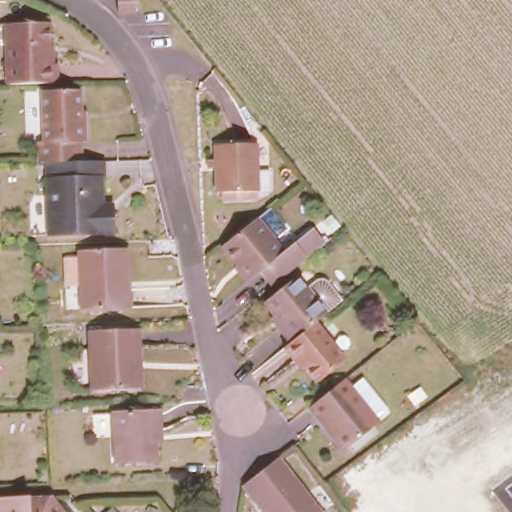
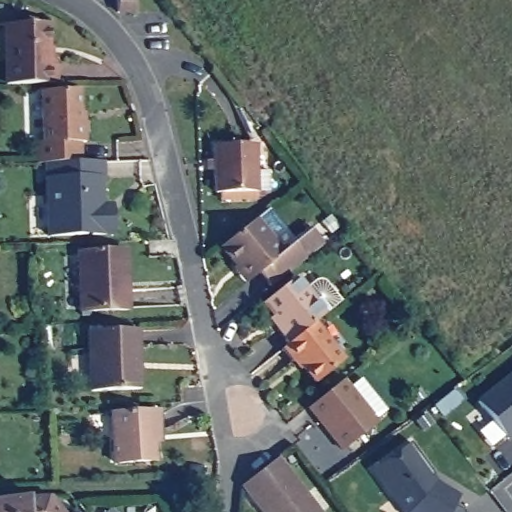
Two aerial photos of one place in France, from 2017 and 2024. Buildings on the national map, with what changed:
unchanged [(139,8),(122,10),(121,0),(138,0),(139,8)]
unchanged [(3,20),(46,20),(47,62),(54,61),(54,80),(4,81),(3,20)]
unchanged [(35,139),(41,139),(40,88),(77,87),(78,120),(83,120),(83,139),(78,139),(78,159),(43,160),(36,161),(35,139)]
unchanged [(220,195),(220,187),(215,188),(212,140),(252,138),(255,185),(253,185),(254,193),(220,195)]
unchanged [(78,159),(81,159),(101,159),(101,173),(99,174),(100,199),(103,201),(103,209),(108,209),(108,228),(45,230),(43,160),(78,159)]
unchanged [(232,266),(235,264),(219,245),(266,206),(282,225),(269,236),(281,252),(310,229),(322,242),(268,285),(256,271),(250,275),(242,281),(232,266)]
unchanged [(77,248),(122,246),(123,284),(127,284),(127,307),(79,309),(77,248)]
unchanged [(268,314),(259,302),(290,276),(320,314),(310,322),(284,343),(270,326),(264,318),(268,314)]
unchanged [(339,359),(309,382),(291,359),(288,361),(278,348),(284,343),(310,322),(339,359)]
unchanged [(87,328),(137,327),(137,386),(88,387),(87,328)]
new [(512,373),(512,432),(511,433),(482,397),(512,373)]
unchanged [(374,422),(338,451),(304,408),(340,378),(374,422)]
unchanged [(114,405),(160,404),(160,433),(155,434),(155,460),(115,461),(114,405)]
demolished [(382,512),(369,496),(478,412),(493,430),(395,509),(392,512),(382,512)]
new [(433,477),(458,495),(452,503),(463,508),(466,512),(406,512),(373,469),(409,442),(433,472),(433,477)]
unchanged [(324,512),(267,512),(243,480),(262,463),(277,451),(324,512)]
unchanged [(59,512),(0,512),(0,494),(44,492),(59,512)]

